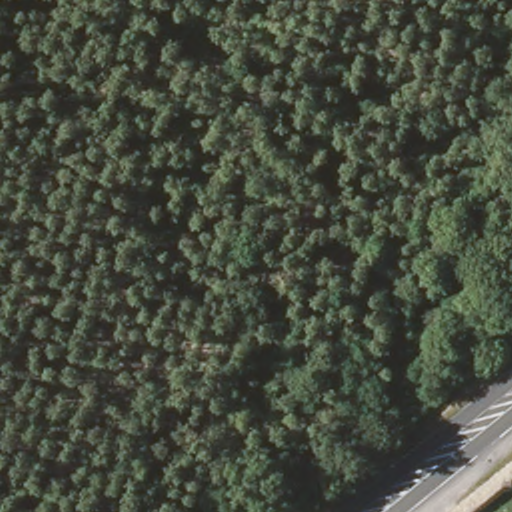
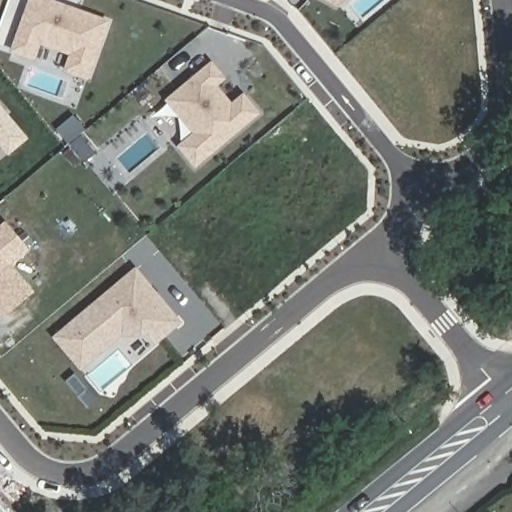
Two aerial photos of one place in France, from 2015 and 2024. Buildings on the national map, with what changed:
new [(30,0),(52,0),(51,2),(60,6),(61,2),(107,20),(86,76),(65,68),(71,52),(39,40),(34,57),(12,49),(30,0)]
new [(338,4),(331,0),(341,0),(338,4)]
new [(211,62),(225,77),(215,85),(231,104),(244,94),(258,112),(195,164),(180,145),(195,132),(167,99),(211,62)]
new [(9,152),(0,141),(0,106),(26,137),(9,152)]
new [(27,249),(10,264),(31,291),(5,313),(0,308),(0,228),(6,222),(27,249)]
new [(136,270),(180,322),(158,341),(150,332),(121,333),(81,367),(55,337),(136,270)]
new [(6,512),(0,512),(0,505),(6,512)]

